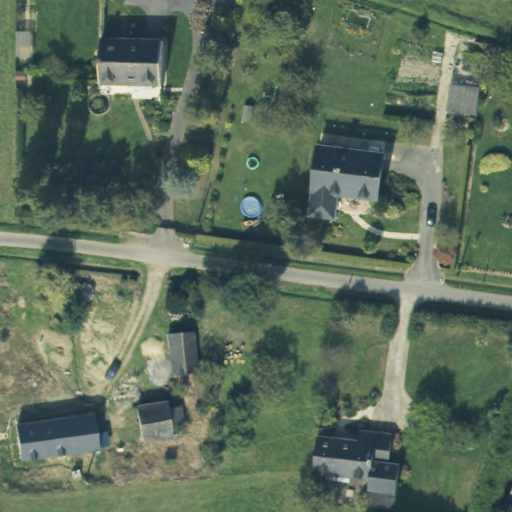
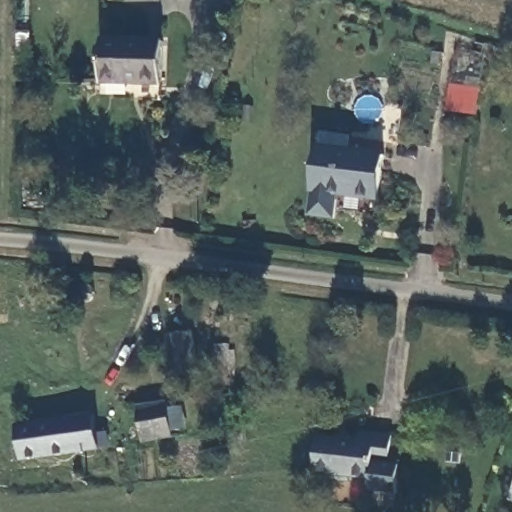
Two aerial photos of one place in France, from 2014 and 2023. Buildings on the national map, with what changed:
unchanged [(34,34),(34,54),(16,53),(16,34),(34,34)]
unchanged [(157,44),(155,85),(97,83),(100,42),(157,44)]
unchanged [(447,82),(479,86),(475,116),(444,112),(447,82)]
unchanged [(338,194),(335,219),(311,215),(314,190),(320,147),(377,155),(375,178),(372,198),(338,194)]
unchanged [(87,284),(92,286),(95,290),(95,294),(93,300),(88,304),(82,304),(76,300),(75,291),(78,286),(87,284)]
unchanged [(172,334),(196,332),(201,373),(195,373),(196,385),(179,387),(172,334)]
unchanged [(142,408),(170,403),(171,408),(181,407),(184,428),(175,429),(177,438),(147,442),(142,408)]
unchanged [(105,447),(95,448),(95,449),(42,457),(21,460),(16,426),(35,423),(90,416),(92,435),(102,433),(105,447)]
unchanged [(365,436),(366,426),(390,428),(387,457),(397,458),(396,475),(395,487),(367,485),(368,474),(352,472),(348,472),(348,478),(326,476),(327,470),(312,469),(317,432),(365,436)]

